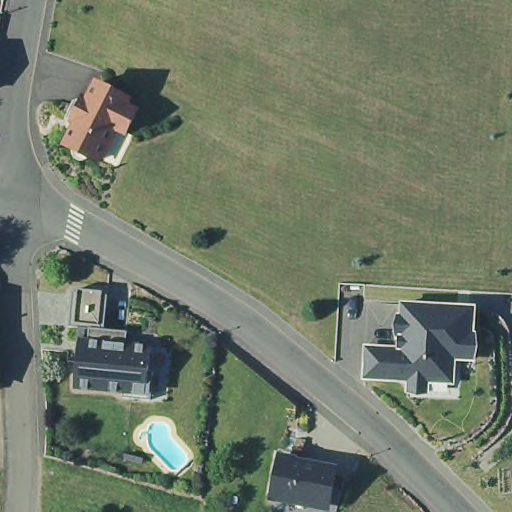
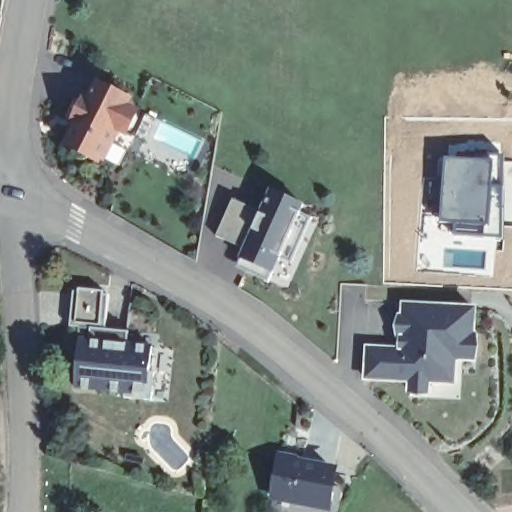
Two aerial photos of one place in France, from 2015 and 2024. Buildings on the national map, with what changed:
unchanged [(128,139),(117,133),(103,162),(61,146),(74,118),(67,114),(79,93),(86,97),(96,80),(133,99),(131,105),(138,109),(128,139)]
new [(442,157),(497,158),(496,187),(499,196),(501,196),(501,239),(449,231),(451,224),(438,223),(442,157)]
new [(233,200),(262,213),(271,191),(304,206),(301,213),(313,219),(312,221),(299,215),(291,233),(303,238),(291,264),(280,258),(269,283),(266,282),(267,281),(246,272),(251,263),(241,259),(244,249),(216,237),(233,200)]
unchanged [(151,396),(75,386),(78,337),(84,336),(84,327),(64,324),(72,287),(105,292),(103,327),(124,331),(124,339),(151,345),(151,396)]
unchanged [(452,365),(452,385),(429,383),(429,394),(404,393),(405,385),(362,384),(361,342),(388,343),(389,315),(397,314),(399,300),(474,305),(474,333),(481,347),(474,364),(452,365)]
unchanged [(315,512),(264,501),(274,447),(337,463),(330,512),(315,512)]

